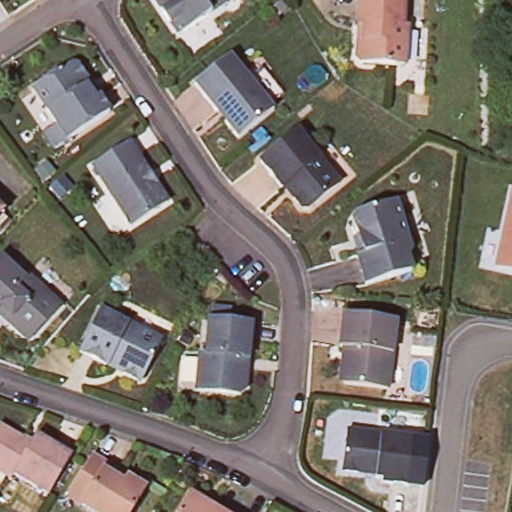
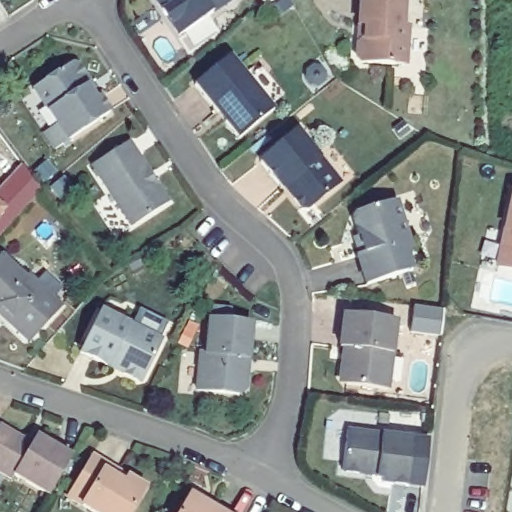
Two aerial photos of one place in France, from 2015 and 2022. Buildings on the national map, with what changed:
unchanged [(233,0),(180,37),(155,1),(156,0),(233,0)]
unchanged [(405,20),(406,57),(362,57),(356,52),(355,40),(362,34),(361,21),(355,21),(355,0),(400,0),(400,20),(405,20)]
unchanged [(232,58),(276,112),(239,141),(226,125),(226,118),(222,113),(218,116),(196,88),(232,58)]
unchanged [(61,60),(70,62),(99,109),(47,145),(37,128),(48,120),(25,84),(61,60)]
unchanged [(299,135),(341,187),(310,211),(302,211),(296,204),(297,195),(290,187),(284,192),(262,164),(299,135)]
unchanged [(133,226),(96,168),(131,145),(147,171),(158,187),(169,204),(133,226)]
unchanged [(48,165),(56,175),(44,184),(37,174),(48,165)]
new [(42,191),(15,222),(0,209),(0,196),(25,168),(42,191)]
unchanged [(496,271),(505,229),(512,194),(512,274),(496,271)]
unchanged [(392,200),(407,248),(404,255),(409,270),(362,284),(353,255),(359,253),(350,219),(352,211),(392,200)]
new [(0,237),(0,208),(15,222),(0,237)]
unchanged [(27,283),(31,280),(62,310),(34,341),(26,340),(2,318),(0,319),(0,263),(2,260),(27,283)]
unchanged [(162,344),(144,382),(137,384),(80,356),(101,313),(162,344)]
unchanged [(391,319),(385,389),(342,384),(337,377),(337,368),(342,363),(343,347),(339,347),(342,313),(391,319)]
unchanged [(197,354),(202,355),(206,321),(248,325),(242,390),(235,395),(192,391),(197,354)]
unchanged [(10,473),(8,477),(0,472),(0,425),(27,440),(32,433),(67,454),(45,493),(10,473)]
unchanged [(412,438),(406,485),(381,482),(381,478),(374,477),(375,472),(362,470),(361,473),(341,470),(345,429),(412,438)]
unchanged [(128,512),(103,512),(68,490),(92,449),(107,458),(127,471),(146,482),(128,512)]
unchanged [(189,498),(214,512),(181,512),(189,498)]

